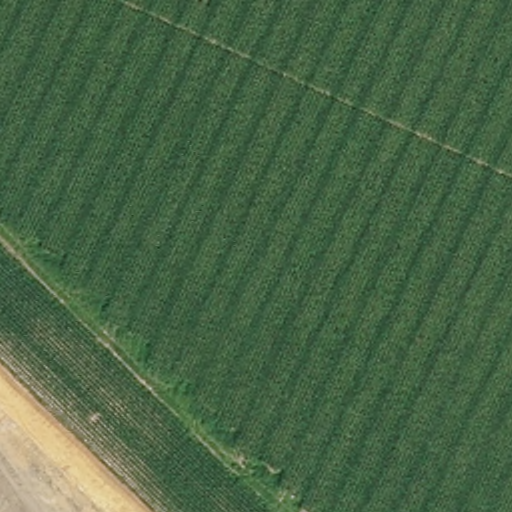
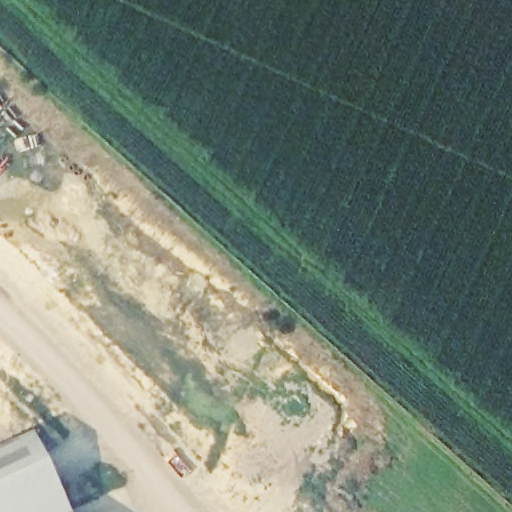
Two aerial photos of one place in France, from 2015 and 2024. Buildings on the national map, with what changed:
new [(28,431),(67,512),(0,512),(0,444),(28,431)]

